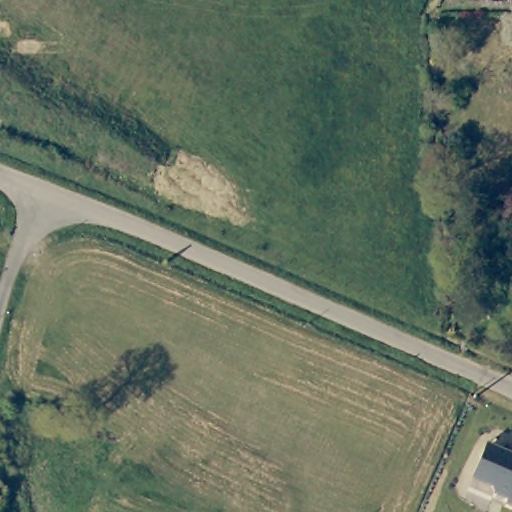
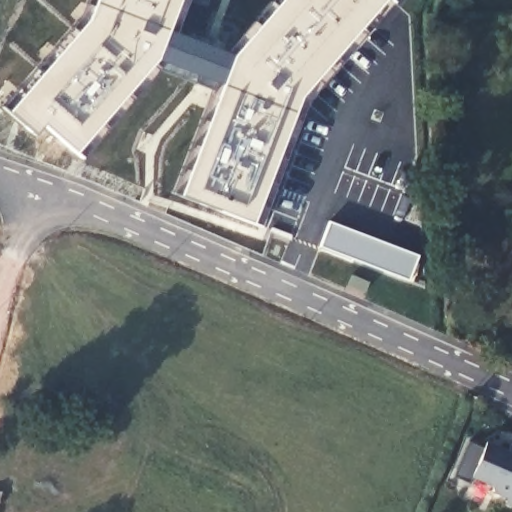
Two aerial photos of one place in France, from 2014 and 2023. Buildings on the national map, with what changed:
new [(247,31),(274,0),(377,0),(286,107),(244,223),(173,190),(202,86),(219,68),(163,38),(75,145),(12,99),(97,5),(99,0),(180,0),(247,31)]
unchanged [(492,443),(508,450),(512,440),(512,504),(505,500),(507,496),(492,490),(490,483),(471,474),(483,446),(492,443)]

